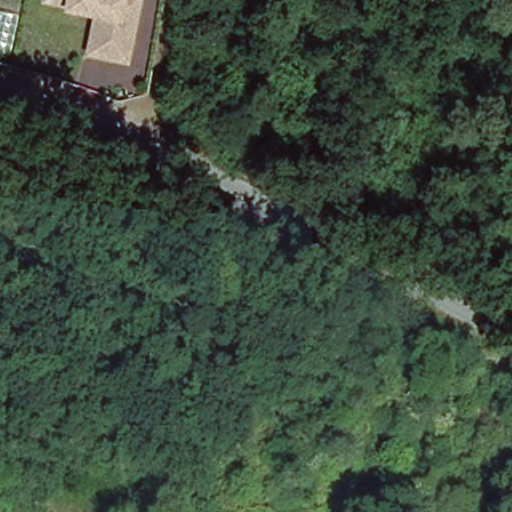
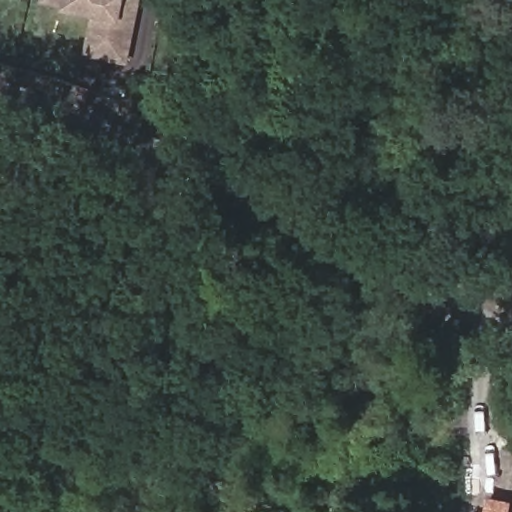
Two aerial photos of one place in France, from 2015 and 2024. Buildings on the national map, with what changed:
unchanged [(134,34),(129,62),(90,55),(95,26),(97,16),(82,12),(67,10),(67,7),(45,4),(46,0),(140,0),(134,34)]
new [(510,512),(485,512),(488,497),(512,501),(510,512)]
unchanged [(450,512),(449,512),(418,512),(419,507),(440,510),(450,512)]

